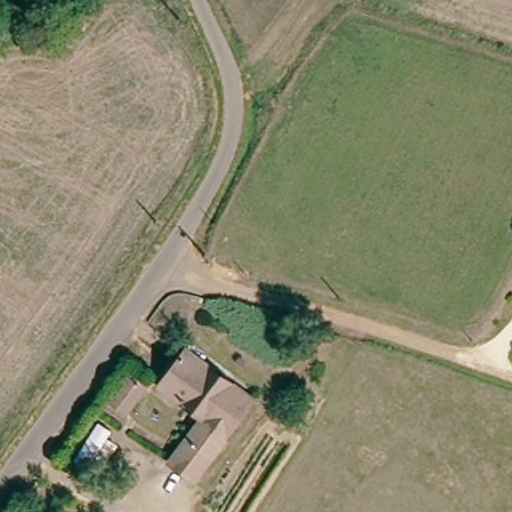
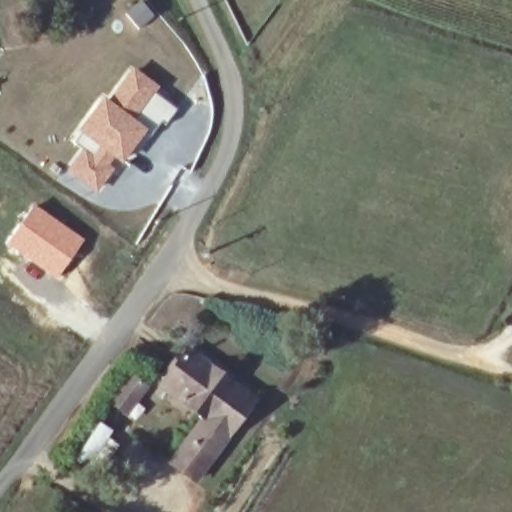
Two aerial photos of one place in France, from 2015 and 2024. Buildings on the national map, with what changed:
new [(159,87),(155,92),(176,109),(167,122),(161,119),(148,136),(144,132),(122,164),(115,158),(109,165),(114,170),(96,193),(67,171),(83,149),(74,142),(81,134),(77,131),(102,97),(109,101),(132,67),(159,87)]
new [(33,205),(84,239),(58,280),(6,246),(33,205)]
unchanged [(207,419),(162,389),(187,351),(260,398),(203,482),(177,467),(207,419)]

